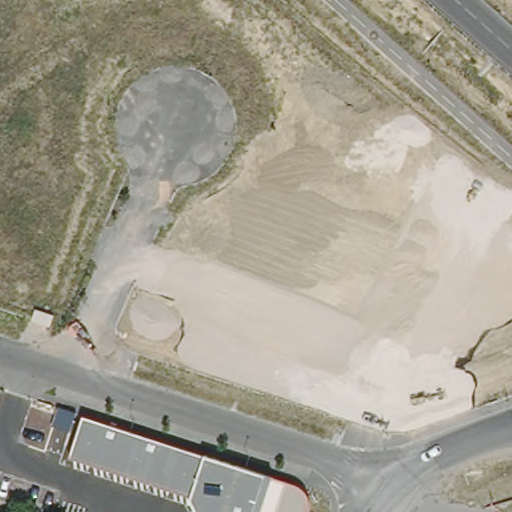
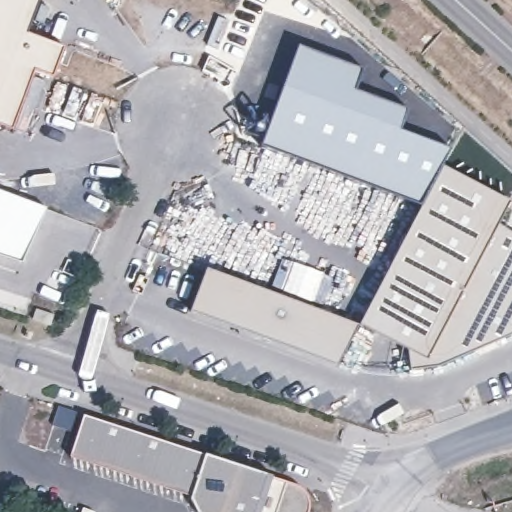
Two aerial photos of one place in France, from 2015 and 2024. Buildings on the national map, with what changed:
new [(28,34),(17,64),(0,57),(0,0),(41,0),(28,34)]
new [(28,34),(65,47),(54,77),(36,70),(17,64),(28,34)]
new [(361,69),(355,90),(406,110),(399,130),(450,149),(442,172),(423,209),(261,147),(298,46),(361,69)]
new [(17,64),(36,70),(14,129),(0,124),(0,57),(17,64)]
new [(495,230),(512,240),(512,338),(442,367),(406,371),(414,350),(363,322),(442,172),(506,203),(495,230)]
new [(46,203),(23,265),(0,257),(0,186),(46,203)]
new [(352,327),(335,365),(190,310),(206,269),(352,327)]
unchanged [(70,458),(84,416),(294,484),(301,490),(307,499),(308,507),(307,512),(195,512),(188,496),(70,458)]

